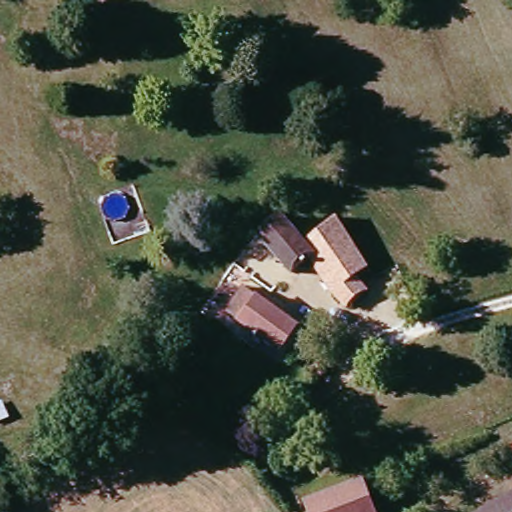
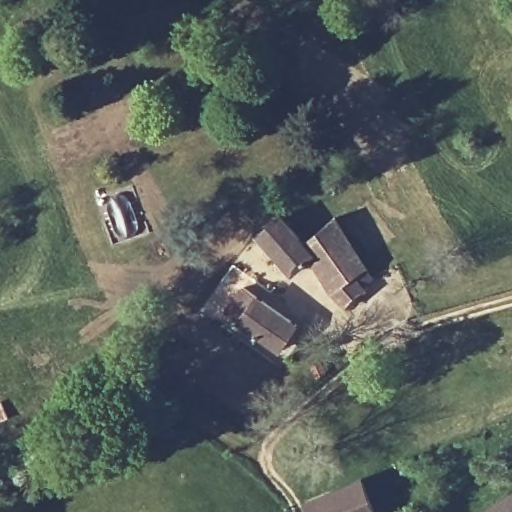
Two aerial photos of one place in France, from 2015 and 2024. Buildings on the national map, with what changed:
unchanged [(359,287),(362,291),(340,306),(306,259),(278,283),(241,245),(264,224),(280,212),(299,241),(334,220),(347,211),(368,246),(375,260),(359,268),(368,278),(359,287)]
unchanged [(282,347),(240,317),(257,294),(298,323),(282,347)]
unchanged [(363,480),(375,512),(310,512),(306,501),(363,480)]
unchanged [(484,510),(512,492),(512,512),(484,512),(484,510)]

